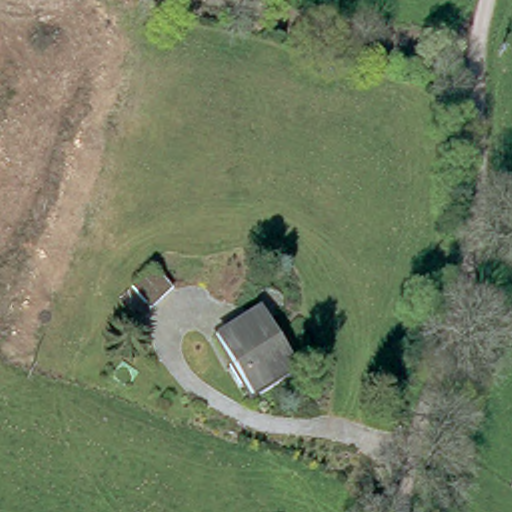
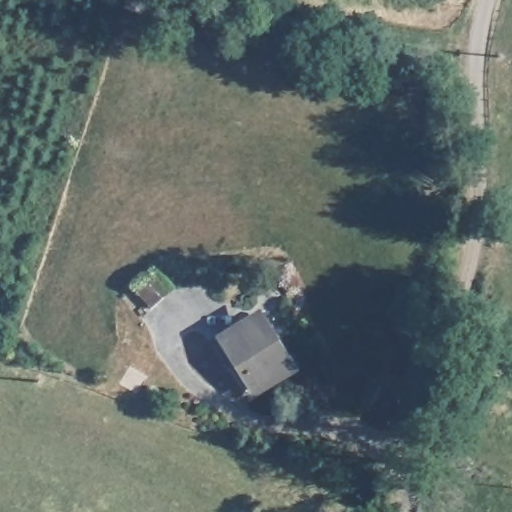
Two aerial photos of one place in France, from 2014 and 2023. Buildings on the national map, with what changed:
unchanged [(139,297),(159,274),(183,294),(161,315),(139,297)]
unchanged [(233,330),(259,315),(288,364),(254,384),(238,358),(230,362),(212,332),(228,322),(233,330)]

